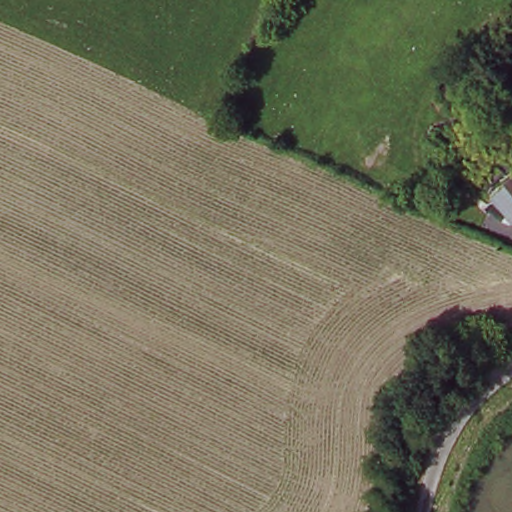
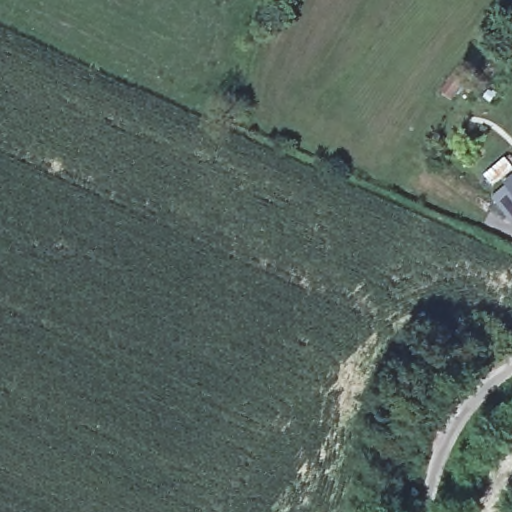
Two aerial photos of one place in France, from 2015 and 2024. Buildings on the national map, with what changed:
unchanged [(508,188),(512,185),(512,193),(508,188)]

